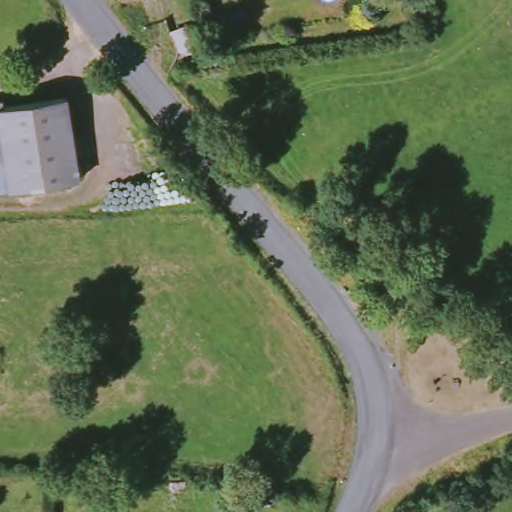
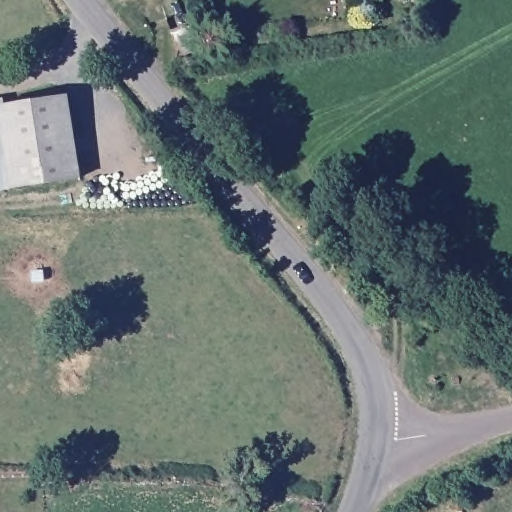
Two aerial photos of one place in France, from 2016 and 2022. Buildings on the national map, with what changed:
unchanged [(71,96),(82,179),(12,187),(0,105),(71,96)]
unchanged [(0,189),(0,105),(12,187),(0,189)]

